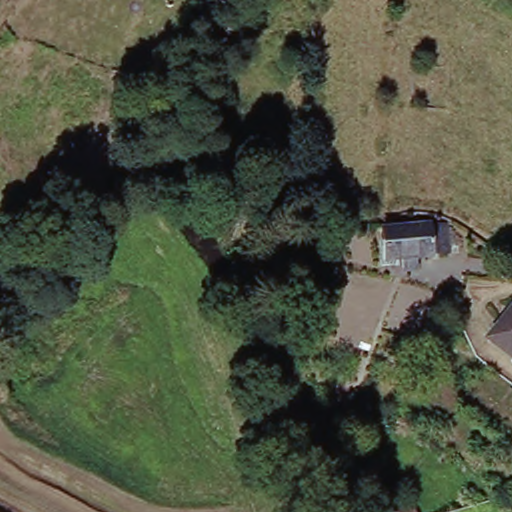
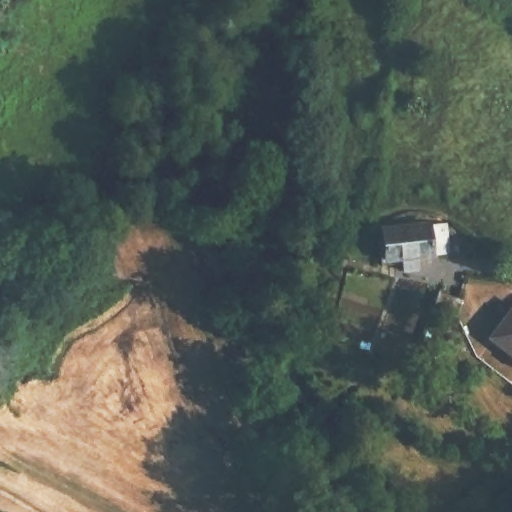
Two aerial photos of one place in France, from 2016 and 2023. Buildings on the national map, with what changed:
unchanged [(405,268),(404,266),(403,255),(385,256),(382,225),(430,220),(431,222),(449,221),(451,250),(418,254),(419,266),(414,267),(405,268)]
unchanged [(512,316),(512,355),(493,339),(512,316)]

